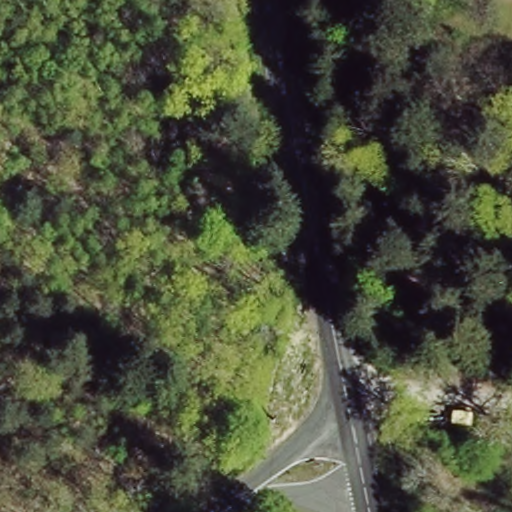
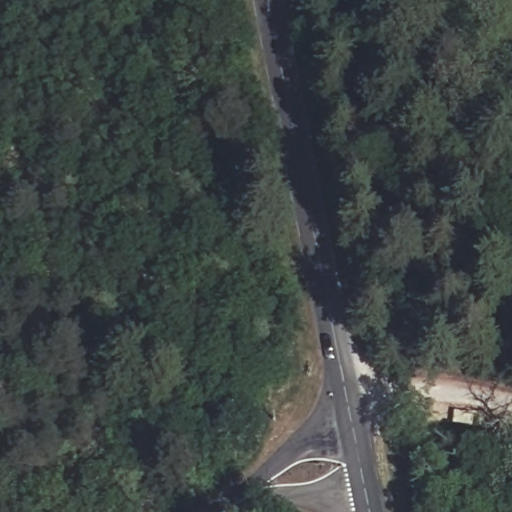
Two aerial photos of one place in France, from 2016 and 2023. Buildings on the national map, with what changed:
unchanged [(507,464),(512,454),(512,467),(507,464)]

